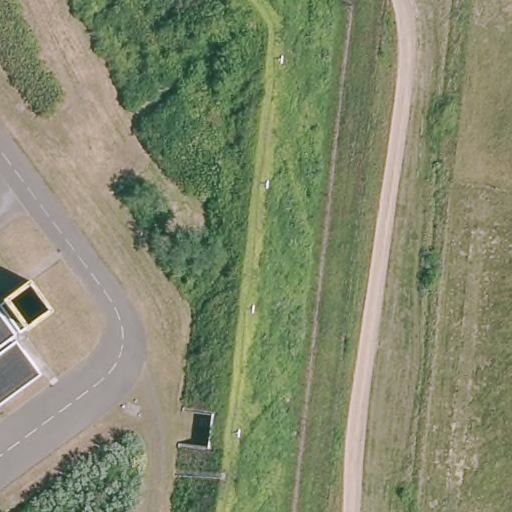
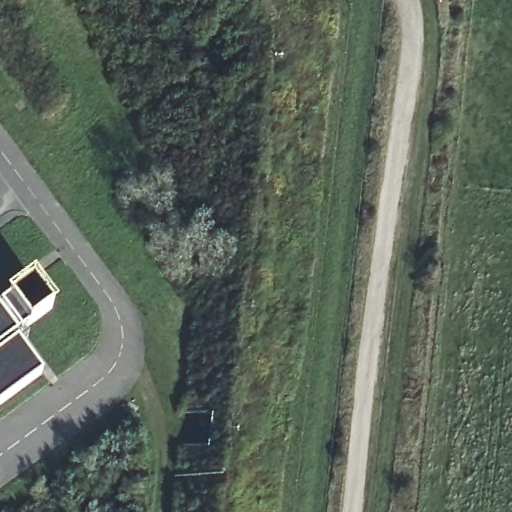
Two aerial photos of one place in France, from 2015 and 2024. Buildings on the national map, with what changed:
unchanged [(52,309),(14,336),(42,373),(0,404),(0,304),(31,281),(52,309)]

